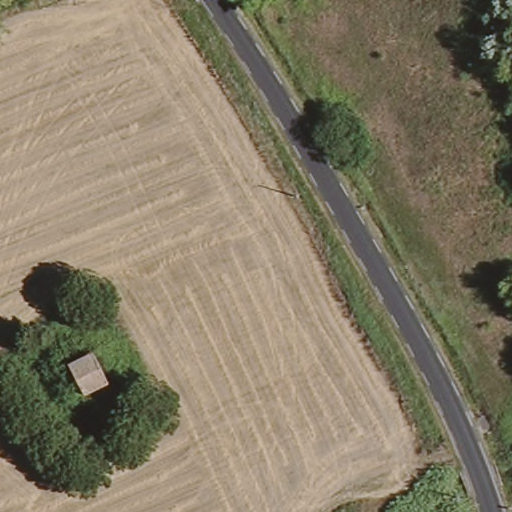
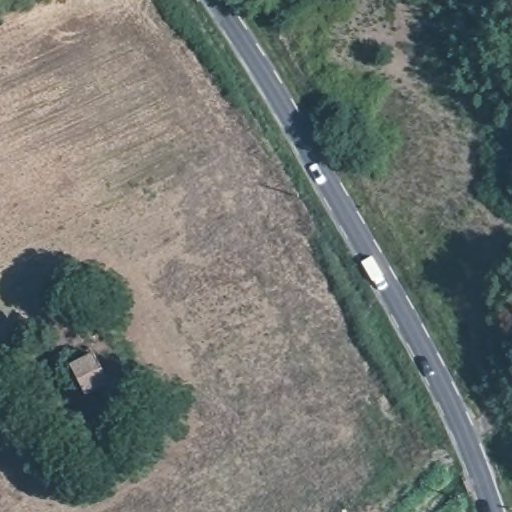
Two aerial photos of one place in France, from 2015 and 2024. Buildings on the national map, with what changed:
unchanged [(89,401),(73,366),(98,354),(114,388),(89,401)]

